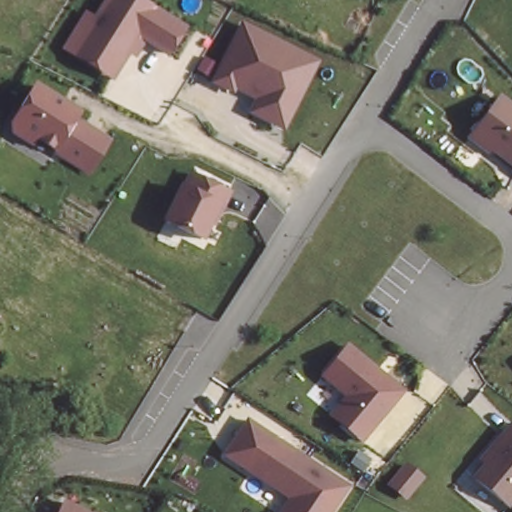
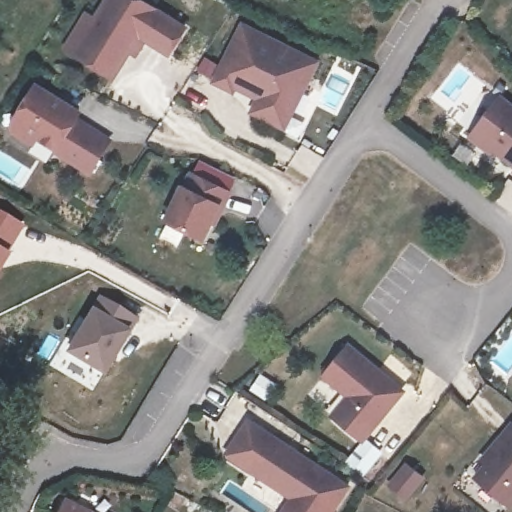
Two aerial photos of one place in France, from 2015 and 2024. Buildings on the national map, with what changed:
unchanged [(170,57),(146,41),(137,58),(130,55),(114,80),(62,49),(86,10),(95,15),(105,0),(146,0),(190,25),(170,57)]
unchanged [(322,61),(287,130),(250,114),(256,101),(237,90),(235,95),(212,80),(242,20),(322,61)]
unchanged [(91,175),(54,152),(52,155),(12,132),(12,125),(35,83),(83,112),(80,120),(112,139),(91,175)]
unchanged [(467,135),(501,92),(512,101),(512,169),(467,135)]
unchanged [(205,244),(164,222),(190,169),(233,191),(205,244)]
new [(0,269),(0,214),(24,228),(0,269)]
new [(113,318),(120,306),(139,318),(105,376),(65,354),(94,306),(113,318)]
unchanged [(407,391),(364,444),(332,417),(347,398),(322,375),(350,342),(407,391)]
unchanged [(335,512),(280,512),(289,499),(222,455),(248,416),(352,486),(335,512)]
unchanged [(510,508),(472,477),(483,462),(480,458),(512,423),(512,507),(510,508)]
unchanged [(93,512),(58,512),(65,498),(93,512)]

